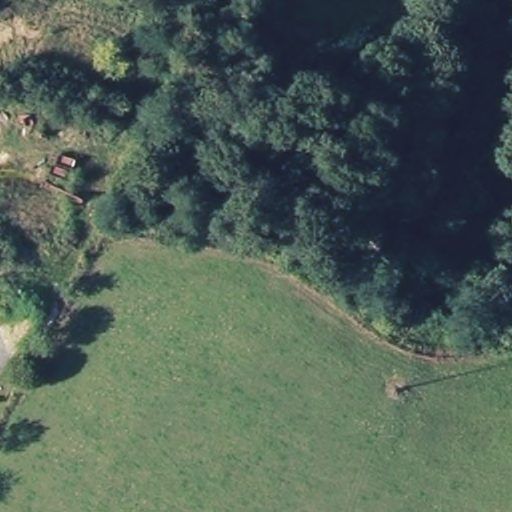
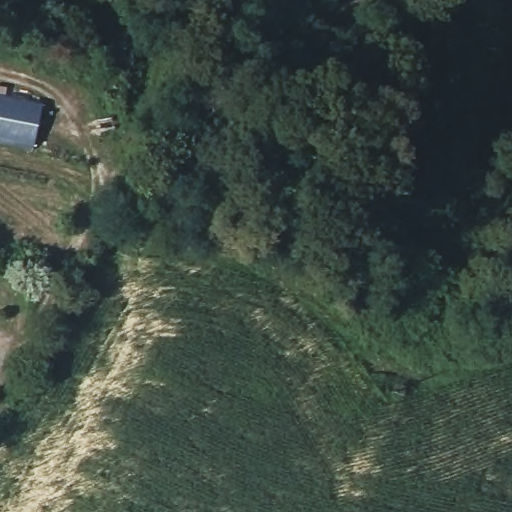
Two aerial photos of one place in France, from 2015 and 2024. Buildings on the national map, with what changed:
new [(43,104),(33,150),(0,145),(0,95),(43,104)]

